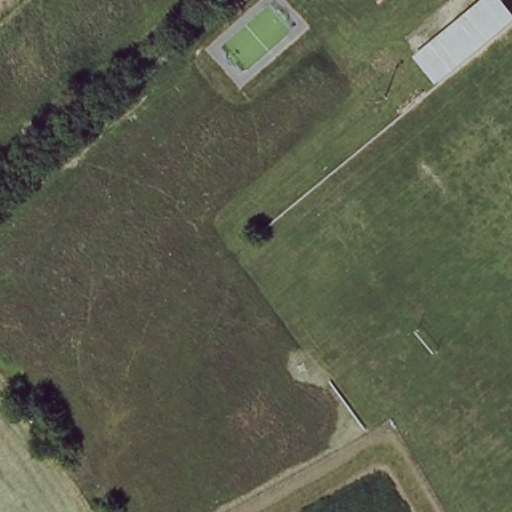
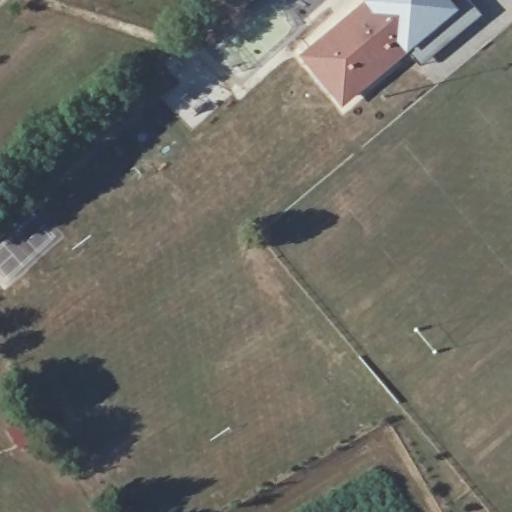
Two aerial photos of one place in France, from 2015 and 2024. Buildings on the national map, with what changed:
new [(420,67),(408,54),(342,109),(302,58),(365,2),(369,0),(467,0),(480,16),(420,67)]
demolished [(504,1),(512,10),(512,24),(462,64),(439,35),(482,0),(504,0),(504,1)]

